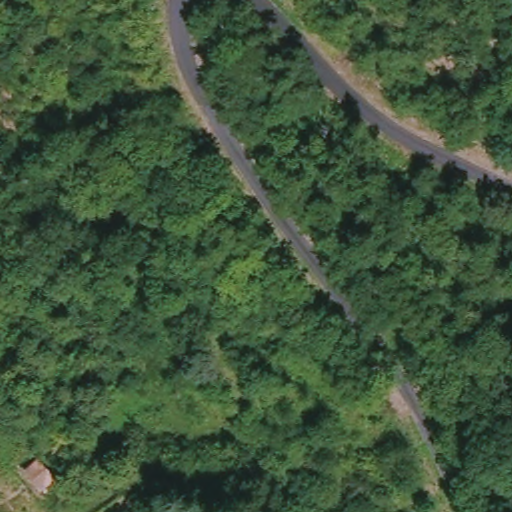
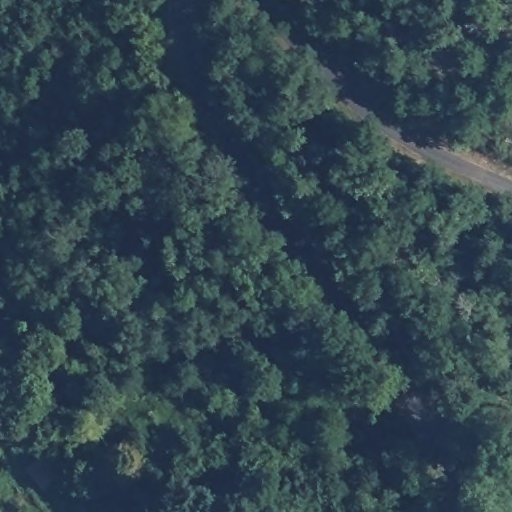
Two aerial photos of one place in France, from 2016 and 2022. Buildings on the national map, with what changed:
unchanged [(47,469),(55,491),(40,494),(35,474),(47,469)]

